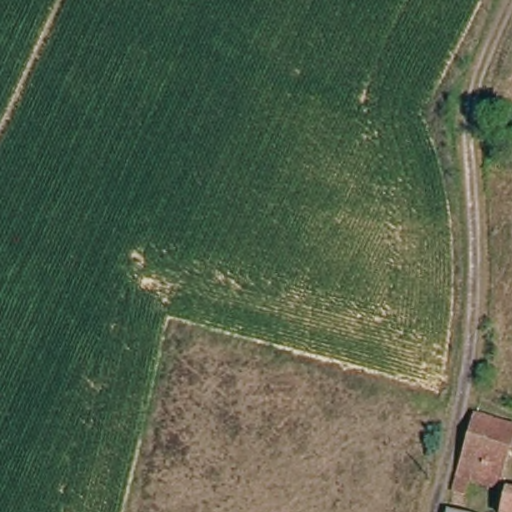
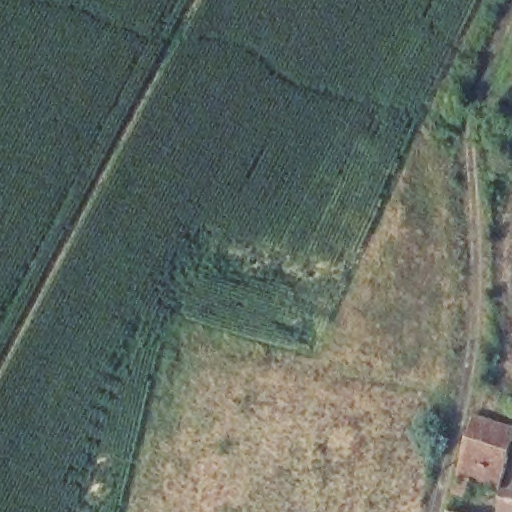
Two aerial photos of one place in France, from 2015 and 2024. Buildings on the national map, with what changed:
unchanged [(512,455),(505,481),(480,475),(475,492),(462,490),(483,417),(512,425),(512,455)]
unchanged [(512,498),(512,512),(509,512),(512,498)]

